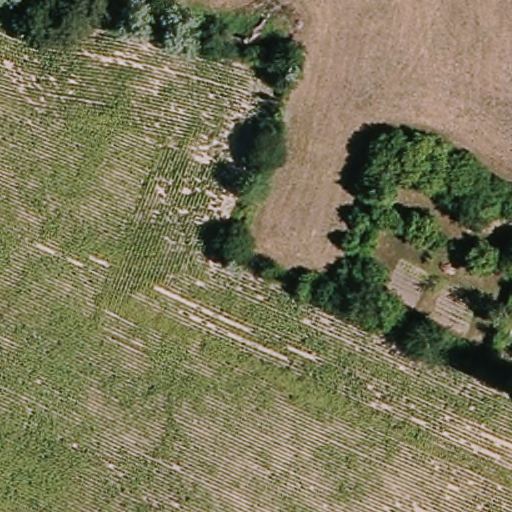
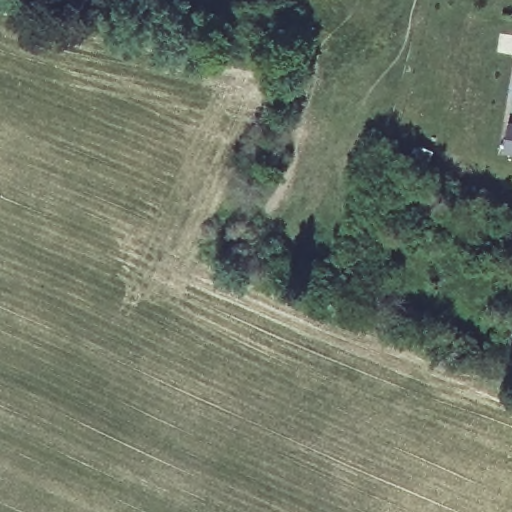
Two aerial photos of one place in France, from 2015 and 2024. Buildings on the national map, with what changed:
new [(509,124),(512,124),(512,152),(505,151),(507,139),(509,124)]

